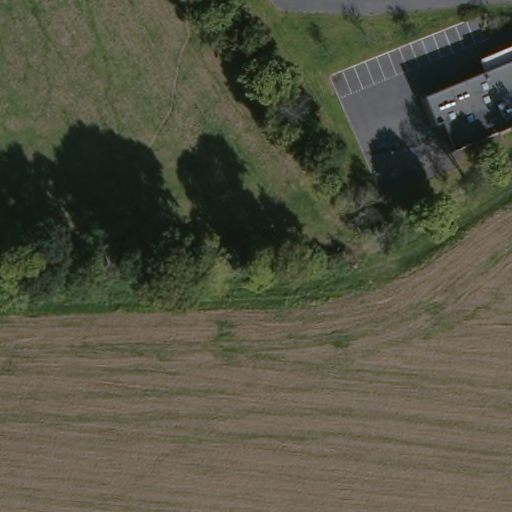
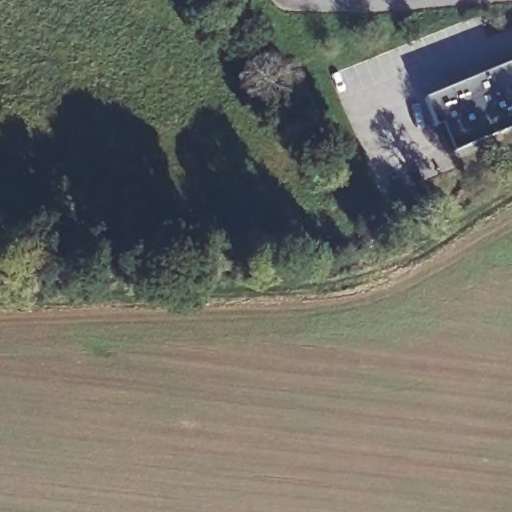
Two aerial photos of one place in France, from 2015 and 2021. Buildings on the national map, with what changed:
unchanged [(453,150),(442,123),(435,126),(425,99),(512,63),(512,126),(453,150)]

